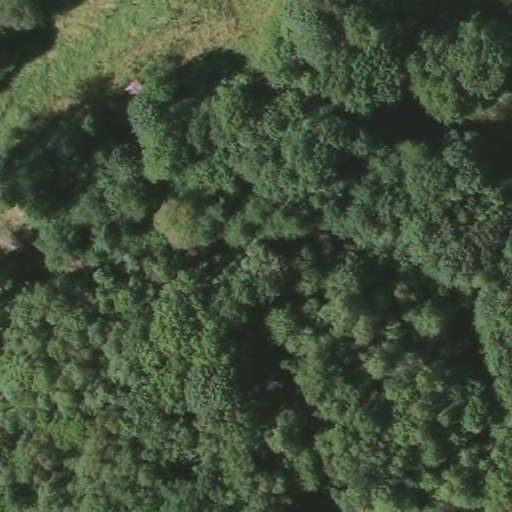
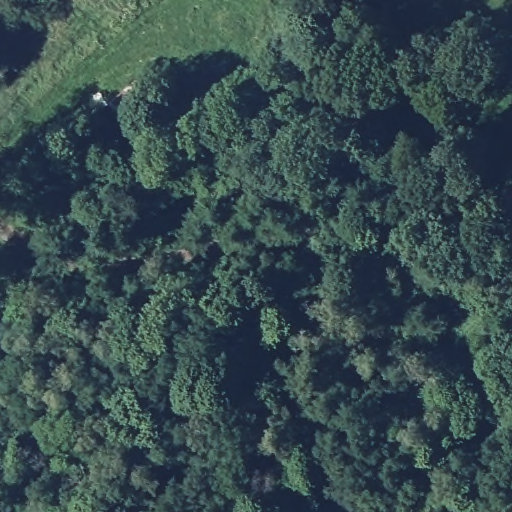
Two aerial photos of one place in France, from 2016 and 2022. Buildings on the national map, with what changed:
unchanged [(136,74),(162,106),(103,151),(77,121),(136,74)]

